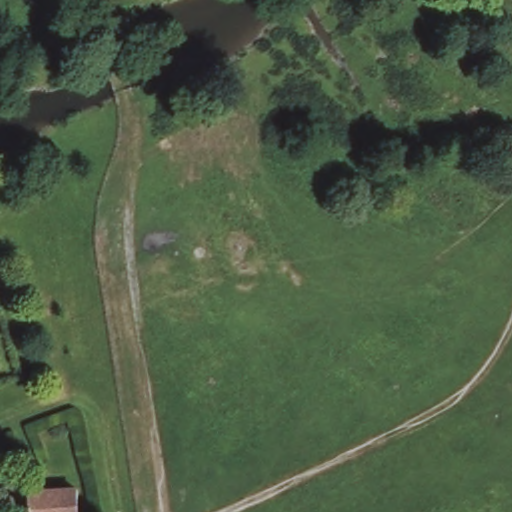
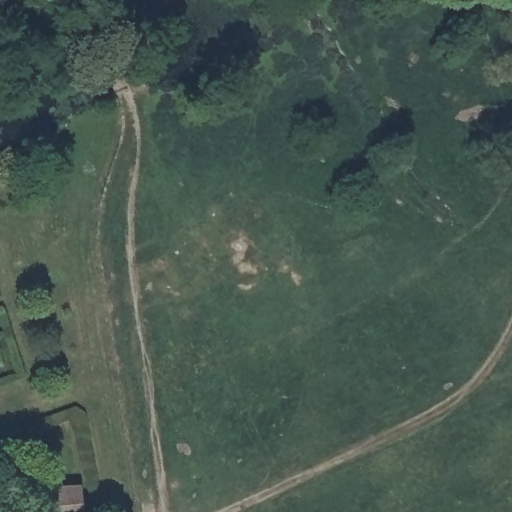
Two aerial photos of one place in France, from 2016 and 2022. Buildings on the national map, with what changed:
unchanged [(85,512),(33,512),(32,488),(83,485),(85,512)]

